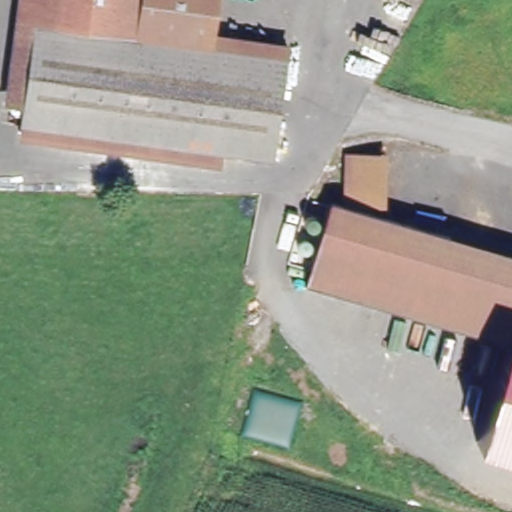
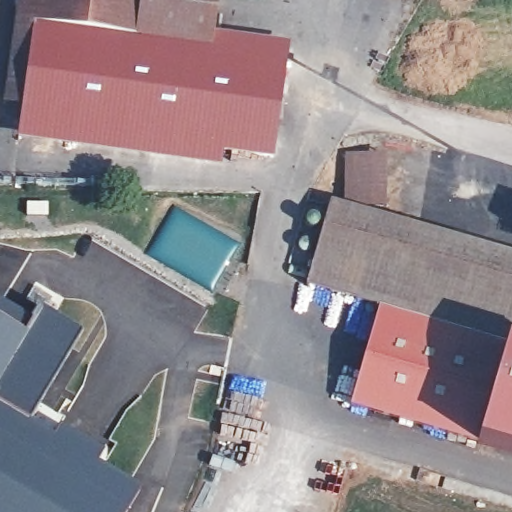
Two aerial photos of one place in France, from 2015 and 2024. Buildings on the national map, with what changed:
unchanged [(13,19),(16,0),(37,0),(34,22),(13,19)]
unchanged [(209,34),(206,48),(282,60),(266,160),(216,152),(20,122),(34,22),(37,0),(214,0),(209,34)]
unchanged [(209,34),(285,46),(282,60),(206,48),(209,34)]
unchanged [(216,152),(214,167),(17,137),(20,122),(216,152)]
unchanged [(387,156),(385,205),(344,204),(346,155),(387,156)]
unchanged [(330,200),(512,257),(512,347),(303,282),(330,200)]
new [(32,316),(38,305),(82,330),(38,409),(104,446),(99,462),(140,487),(125,512),(0,512),(0,297),(32,316)]
new [(507,346),(477,445),(348,407),(378,306),(507,346)]
unchanged [(507,346),(512,347),(512,455),(477,445),(507,346)]

